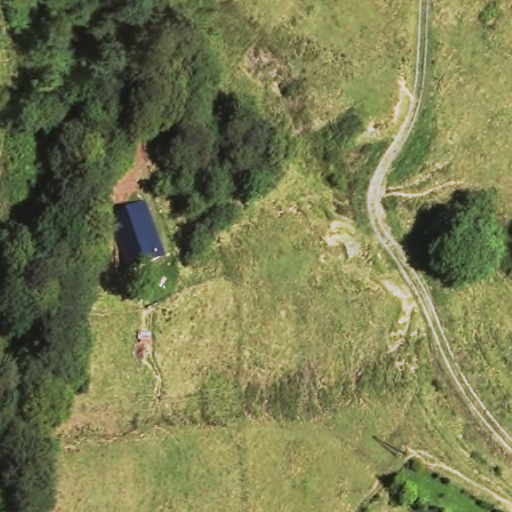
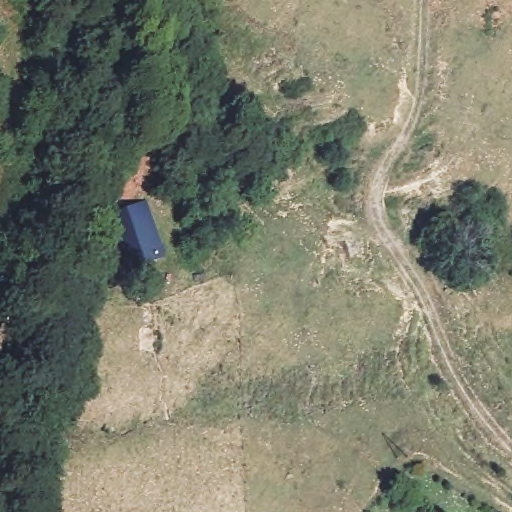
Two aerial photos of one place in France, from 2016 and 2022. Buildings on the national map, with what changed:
unchanged [(124,264),(112,203),(148,195),(161,255),(124,264)]

